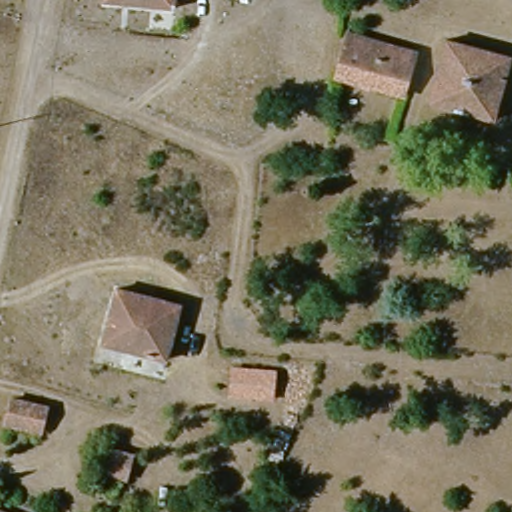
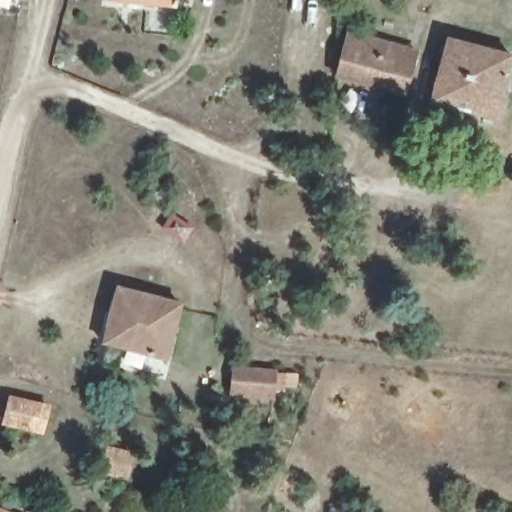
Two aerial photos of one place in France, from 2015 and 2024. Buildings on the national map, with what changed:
unchanged [(175,5),(134,0),(176,0),(175,5)]
unchanged [(349,32),(412,44),(411,60),(406,85),(341,75),(349,32)]
unchanged [(445,75),(452,41),(501,51),(512,53),(512,57),(498,113),(441,104),(445,75)]
unchanged [(117,287),(179,302),(166,356),(102,344),(114,286),(117,287)]
unchanged [(276,370),(273,401),(227,398),(231,366),(276,370)]
unchanged [(17,397),(51,402),(48,426),(14,421),(17,397)]
unchanged [(130,478),(106,472),(111,447),(136,453),(130,478)]
unchanged [(11,512),(0,512),(0,507),(11,512)]

